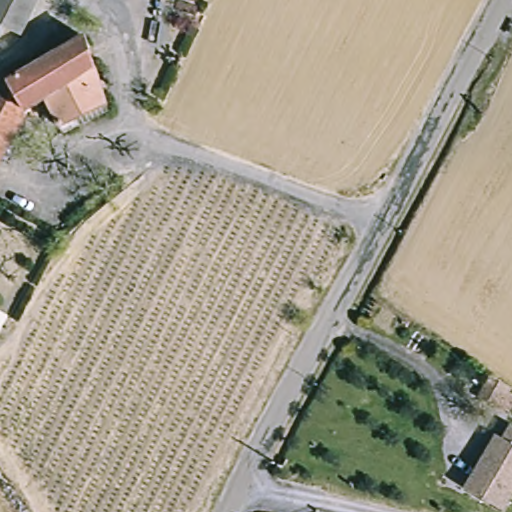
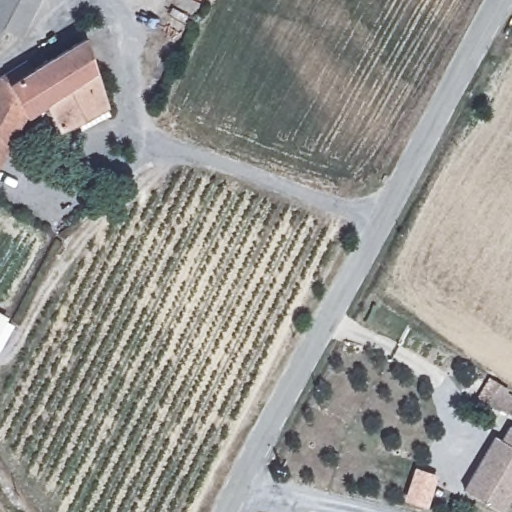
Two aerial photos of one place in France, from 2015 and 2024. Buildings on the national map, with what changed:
unchanged [(0,25),(0,0),(13,0),(0,25)]
unchanged [(13,0),(39,0),(21,35),(8,27),(0,42),(0,25),(13,0)]
unchanged [(97,126),(93,115),(75,125),(62,94),(25,109),(14,81),(0,79),(0,76),(27,60),(32,70),(86,37),(109,107),(111,119),(97,126)]
unchanged [(14,81),(25,109),(0,156),(0,79),(14,81)]
unchanged [(0,332),(0,313),(8,318),(0,332)]
unchanged [(480,397),(491,380),(512,393),(512,411),(510,415),(480,397)]
unchanged [(507,440),(512,430),(512,490),(503,508),(464,488),(494,433),(500,437),(507,440)]
new [(418,471),(436,478),(426,506),(407,499),(418,471)]

